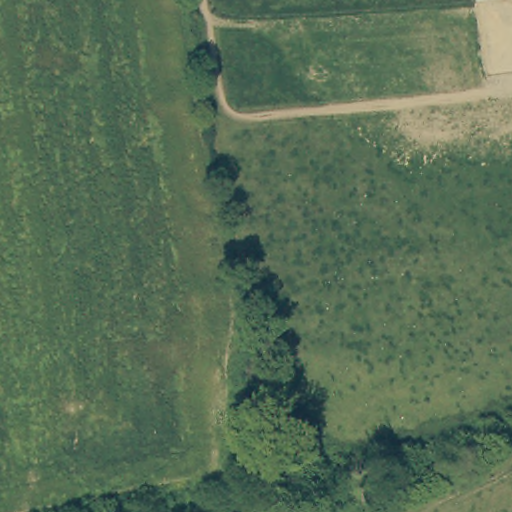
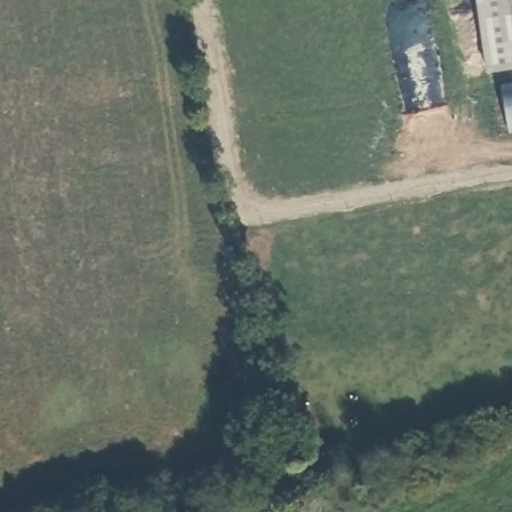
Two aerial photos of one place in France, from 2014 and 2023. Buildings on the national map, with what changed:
new [(477,0),(512,0),(512,70),(487,74),(477,0)]

